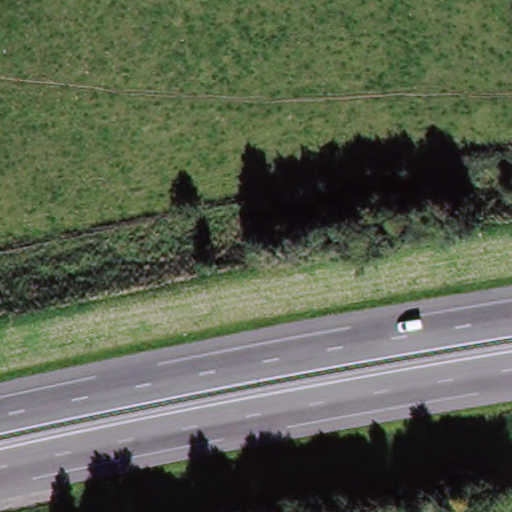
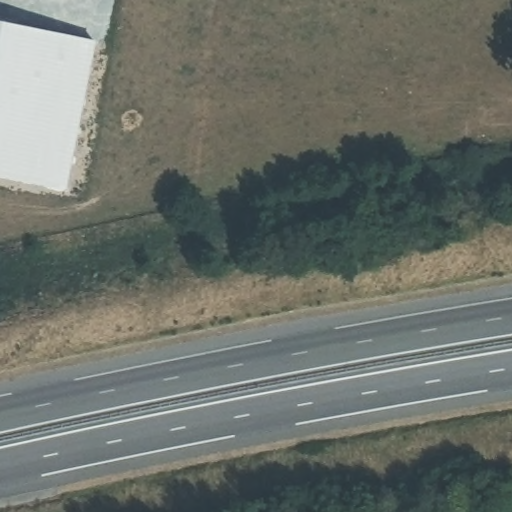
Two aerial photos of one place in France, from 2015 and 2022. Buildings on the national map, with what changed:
new [(65,190),(0,176),(0,21),(97,42),(65,190)]

